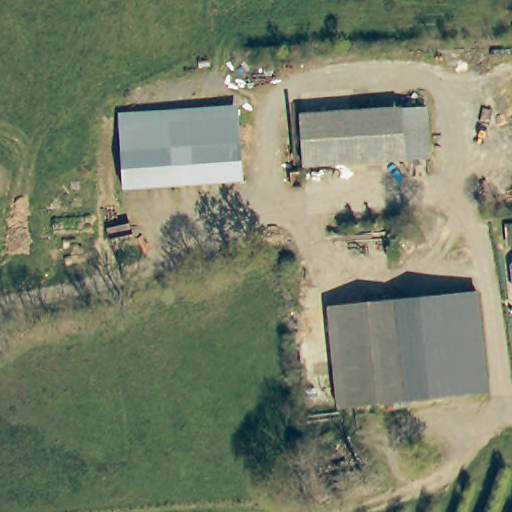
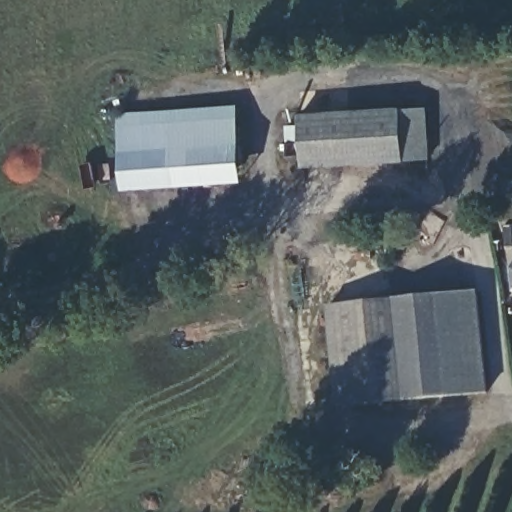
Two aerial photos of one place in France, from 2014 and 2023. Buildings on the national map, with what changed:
unchanged [(122,189),(118,113),(238,105),(244,181),(122,189)]
unchanged [(401,106),(427,105),(427,156),(402,156),(401,106)]
unchanged [(402,156),(304,162),(301,113),(401,106),(402,156)]
unchanged [(476,289),(485,392),(432,396),(432,376),(446,374),(438,293),(476,289)]
unchanged [(338,406),(331,305),(438,293),(446,374),(432,376),(432,396),(338,406)]

